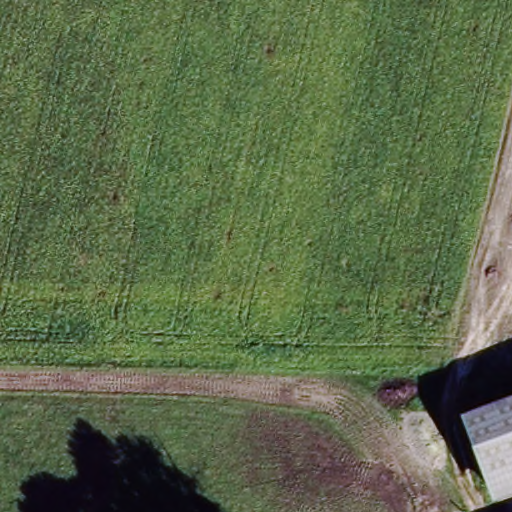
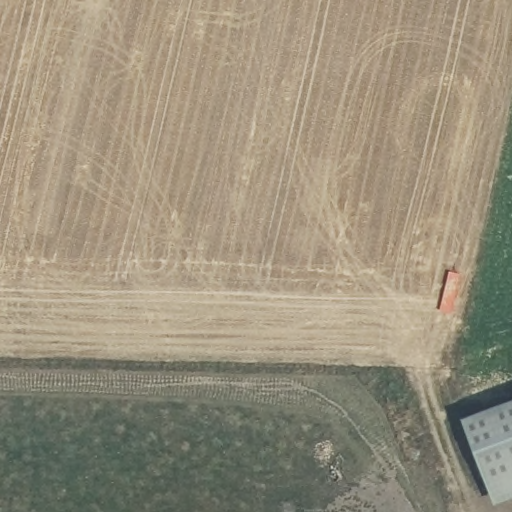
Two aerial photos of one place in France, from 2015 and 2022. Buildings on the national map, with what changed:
unchanged [(512,404),(512,509),(505,512),(503,512),(460,424),(512,404)]

